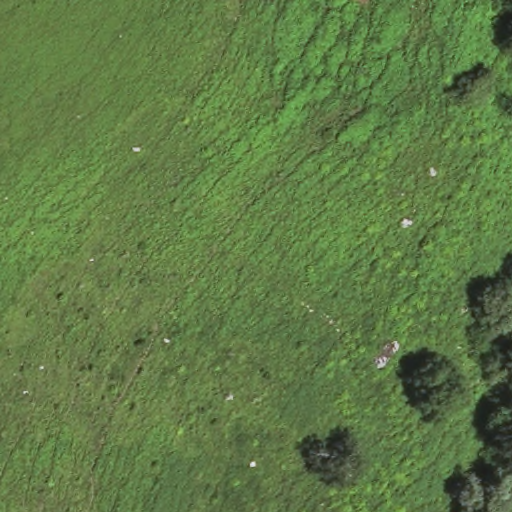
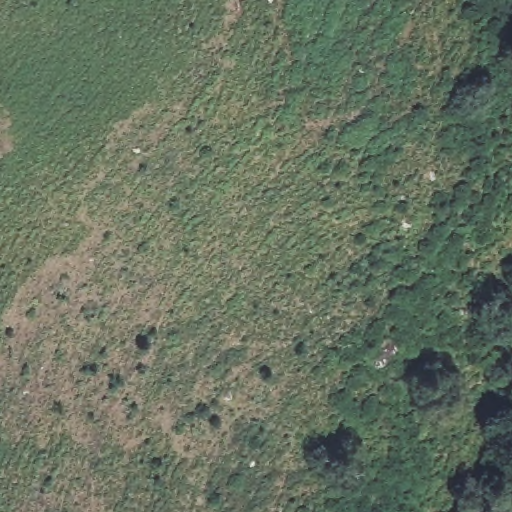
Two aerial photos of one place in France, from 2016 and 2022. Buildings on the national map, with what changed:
[]

